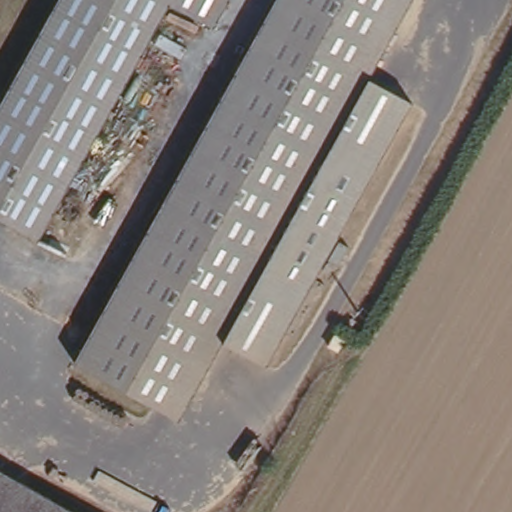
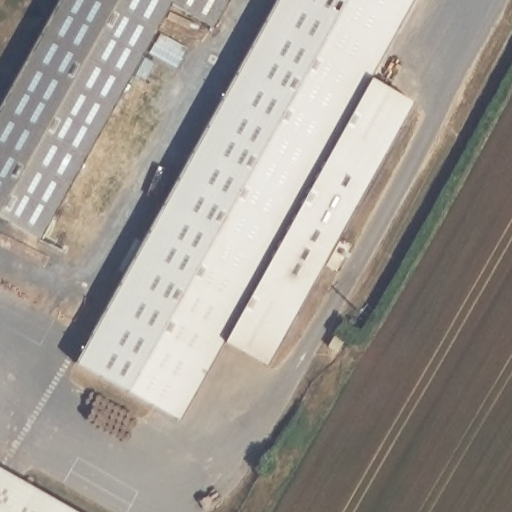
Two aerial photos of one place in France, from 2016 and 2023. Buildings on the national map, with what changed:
unchanged [(60,0),(233,0),(212,36),(169,12),(32,247),(0,229),(0,104),(60,0)]
unchanged [(278,0),(416,0),(372,77),(414,102),(262,367),(219,342),(173,421),(70,361),(278,0)]
unchanged [(331,328),(340,333),(331,351),(322,345),(331,328)]
unchanged [(0,512),(0,460),(84,512),(0,512)]

